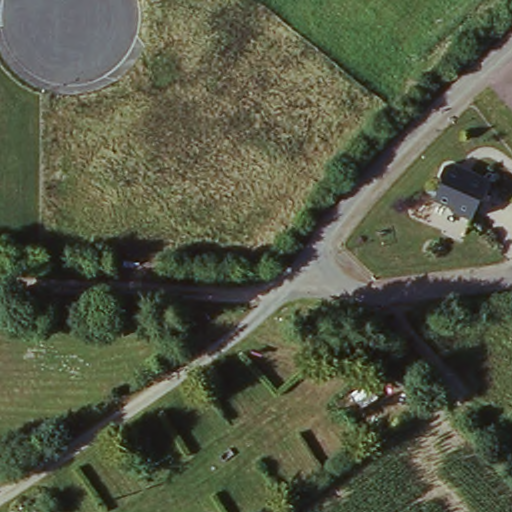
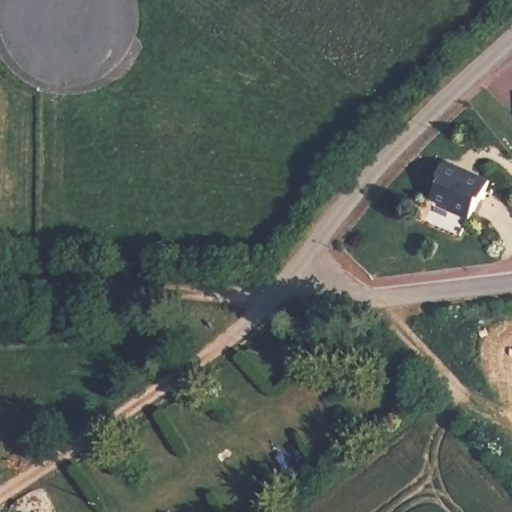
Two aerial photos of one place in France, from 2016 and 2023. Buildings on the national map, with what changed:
unchanged [(493,185),(474,222),(429,201),(446,167),(493,185)]

